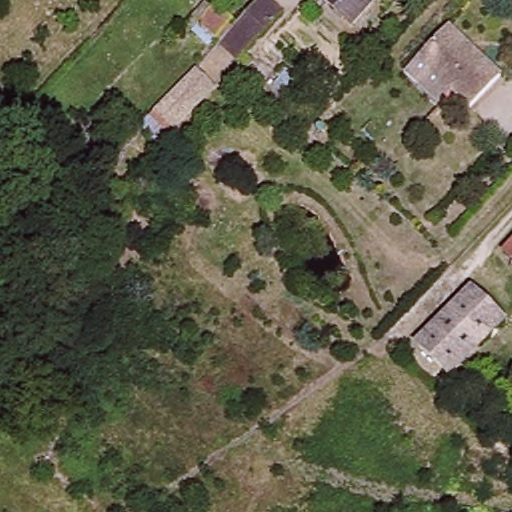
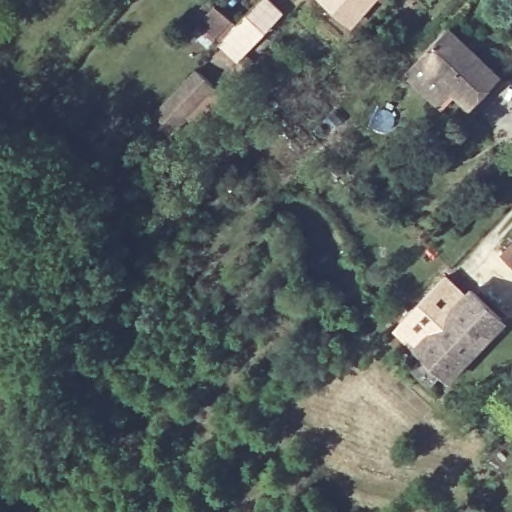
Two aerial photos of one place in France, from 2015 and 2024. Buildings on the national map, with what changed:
unchanged [(210,0),(235,26),(262,0),(275,0),(286,10),(239,64),(216,45),(211,49),(183,26),(206,0),(210,0)]
unchanged [(317,0),(377,0),(350,30),(317,0)]
unchanged [(470,112),(415,61),(441,35),(446,29),(472,54),(500,80),(470,112)]
unchanged [(152,119),(165,104),(206,59),(225,75),(184,120),(170,135),(152,119)]
unchanged [(503,253),(512,243),(512,260),(503,253)]
unchanged [(503,321),(452,376),(421,349),(473,292),(503,321)]

